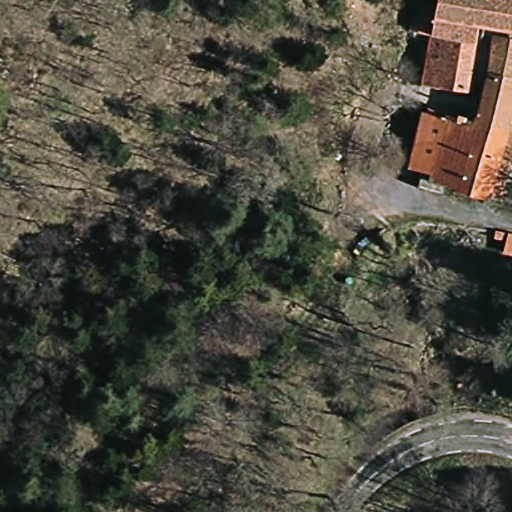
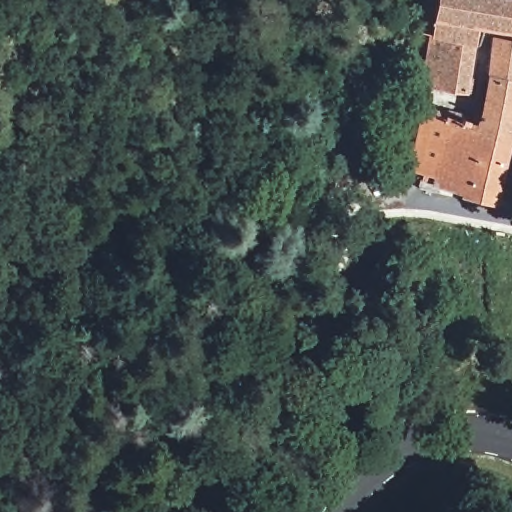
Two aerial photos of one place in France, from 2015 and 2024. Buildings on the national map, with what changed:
unchanged [(425,83),(433,36),(442,0),(512,0),(512,30),(480,27),(470,95),(425,83)]
unchanged [(407,174),(424,111),(478,120),(493,37),(512,41),(512,145),(499,199),(407,174)]

